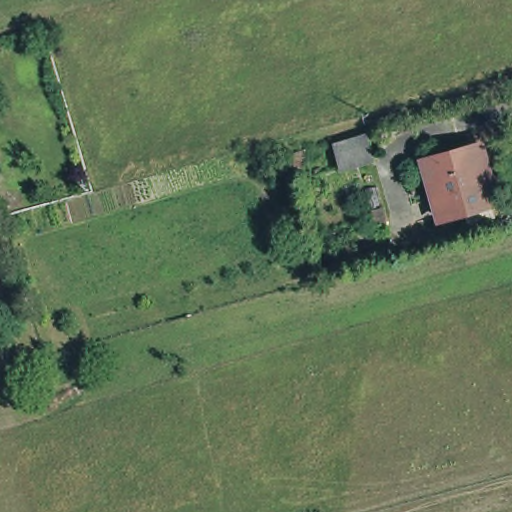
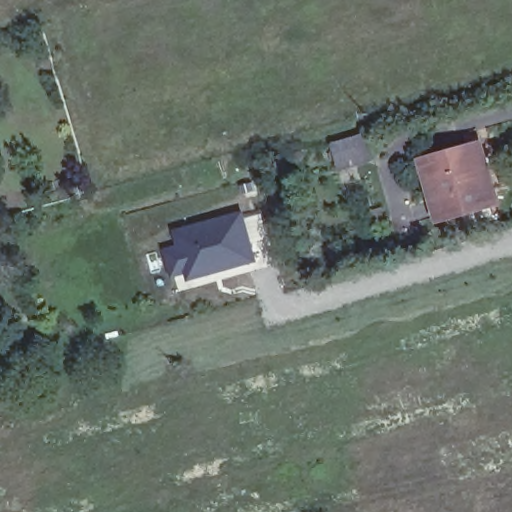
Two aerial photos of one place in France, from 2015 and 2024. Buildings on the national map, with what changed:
unchanged [(334,146),(367,137),(374,160),(340,170),(334,146)]
unchanged [(429,158),(487,142),(503,200),(445,215),(429,158)]
new [(263,260),(195,280),(192,273),(178,277),(170,249),(182,245),(177,227),(247,208),(263,260)]

